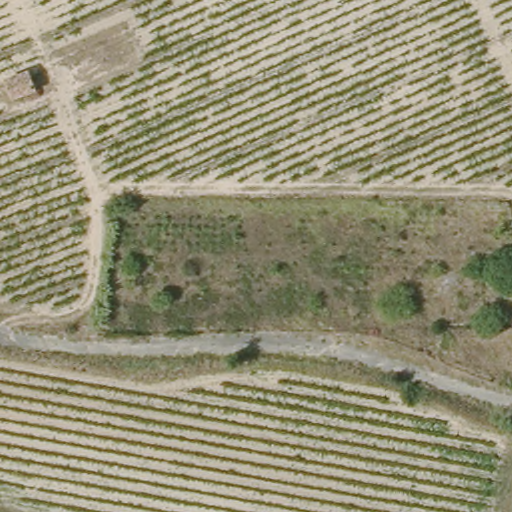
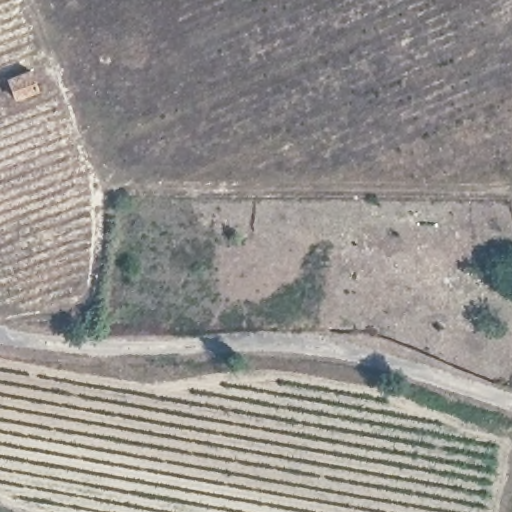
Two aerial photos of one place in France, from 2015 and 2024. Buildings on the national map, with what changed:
unchanged [(22,85),(15,69),(37,56),(45,75),(22,85)]

